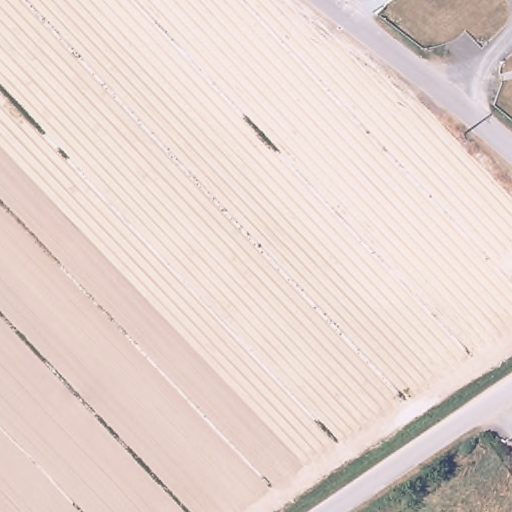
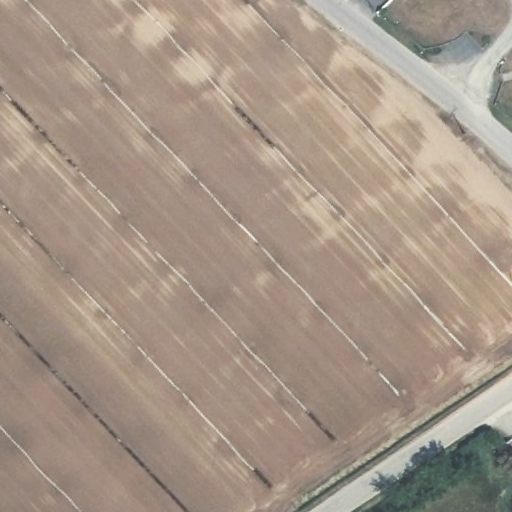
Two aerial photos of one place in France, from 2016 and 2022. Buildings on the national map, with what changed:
[]

